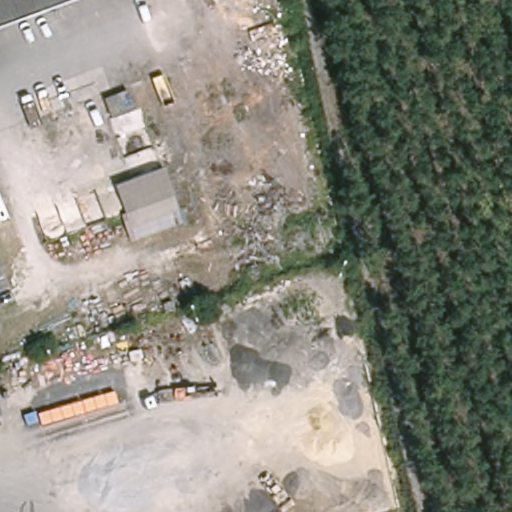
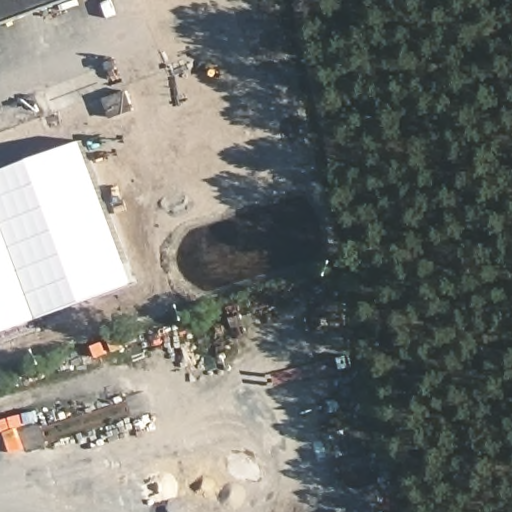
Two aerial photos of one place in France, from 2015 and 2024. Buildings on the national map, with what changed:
unchanged [(0,0),(57,0),(0,22),(0,0)]
unchanged [(137,104),(113,109),(109,92),(133,86),(137,104)]
new [(136,283),(0,333),(0,170),(83,139),(136,283)]
unchanged [(114,178),(160,160),(171,190),(163,194),(125,207),(114,178)]
unchanged [(172,220),(131,235),(121,209),(125,207),(163,194),(172,220)]

